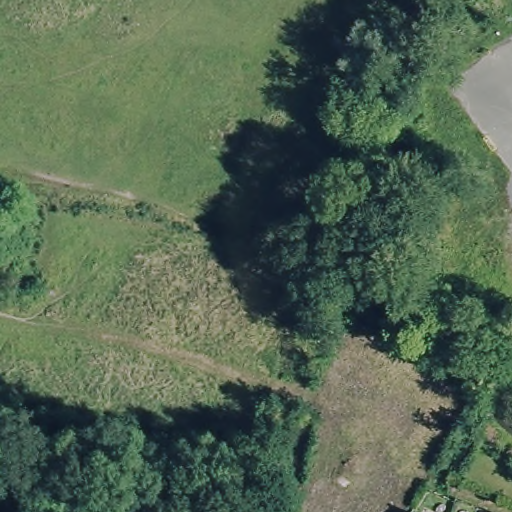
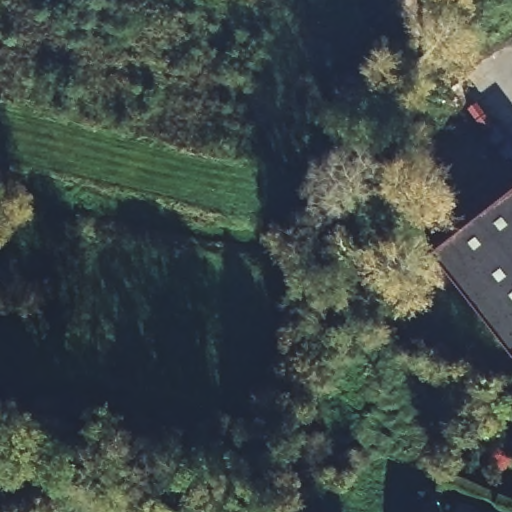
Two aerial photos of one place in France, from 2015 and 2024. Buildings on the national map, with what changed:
new [(432,255),(512,191),(512,357),(432,255)]

